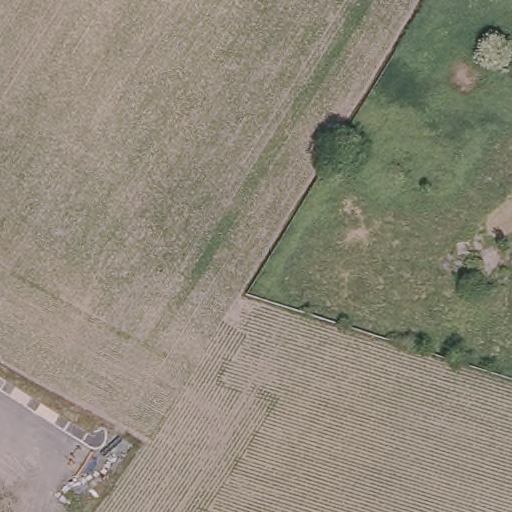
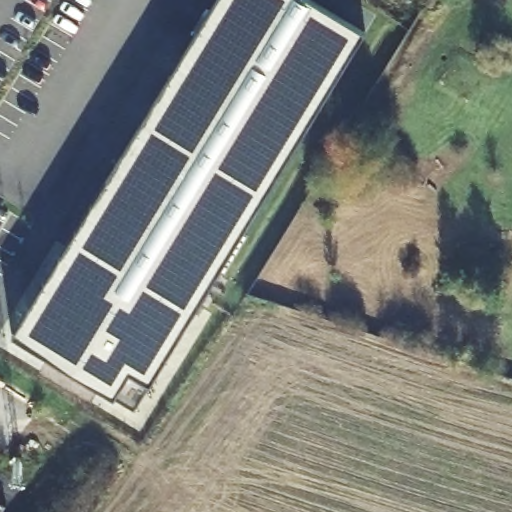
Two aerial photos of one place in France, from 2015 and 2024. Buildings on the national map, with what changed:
new [(365,30),(150,384),(134,408),(113,395),(14,333),(219,0),(313,0),(365,30)]

